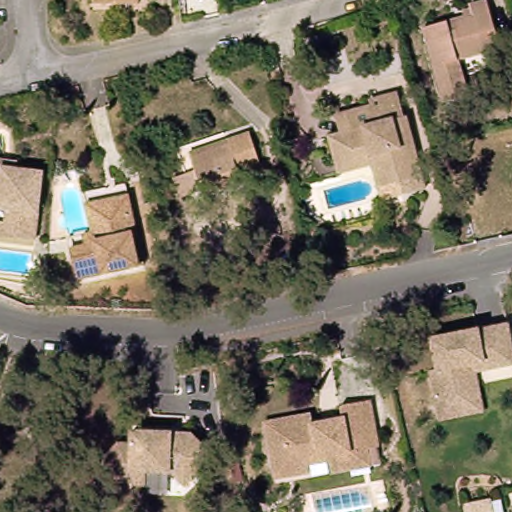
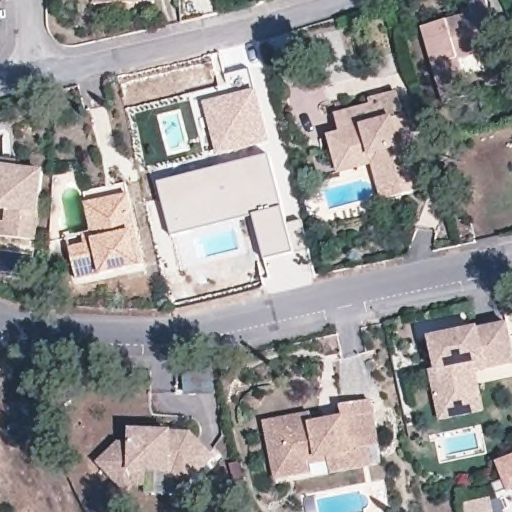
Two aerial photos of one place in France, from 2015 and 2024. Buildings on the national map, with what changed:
unchanged [(135,2),(110,3),(93,4),(93,0),(135,0),(135,2)]
unchanged [(465,95),(440,101),(423,26),(467,15),(466,5),(480,0),(482,0),(495,47),(455,59),(465,95)]
new [(256,88),(270,142),(216,155),(203,103),(256,88)]
unchanged [(406,172),(394,173),(388,155),(356,162),(348,139),(353,138),(346,121),(383,110),(386,123),(413,118),(433,177),(410,183),(406,172)]
demolished [(196,173),(195,159),(228,151),(228,142),(250,138),(258,169),(236,176),(237,184),(182,198),(176,176),(196,173)]
unchanged [(388,188),(381,167),(348,175),(339,140),(348,139),(356,162),(388,155),(394,173),(406,172),(410,183),(388,188)]
new [(270,154),(283,206),(251,215),(171,237),(156,182),(270,154)]
unchanged [(6,215),(0,214),(0,166),(3,166),(17,168),(16,175),(41,178),(34,245),(3,242),(0,242),(0,228),(5,228),(6,215)]
unchanged [(73,277),(70,254),(68,246),(83,244),(83,241),(81,232),(91,230),(86,202),(100,200),(130,195),(141,265),(119,269),(110,271),(73,277)]
new [(283,206),(295,254),(263,261),(251,215),(283,206)]
unchanged [(428,372),(436,371),(430,341),(506,326),(512,358),(512,366),(483,372),(481,363),(463,366),(470,400),(435,406),(428,372)]
unchanged [(473,373),(481,413),(438,421),(435,406),(470,400),(463,366),(481,363),(483,372),(473,373)]
unchanged [(264,419),(310,410),(311,420),(321,418),(331,416),(342,414),(340,401),(369,396),(378,442),(367,444),(370,461),(330,469),(329,461),(328,456),(308,460),(310,468),(286,472),(275,475),(269,444),(264,419)]
unchanged [(131,485),(123,493),(113,483),(95,465),(115,445),(128,446),(128,433),(143,433),(158,433),(187,434),(211,459),(181,485),(170,473),(143,472),(142,485),(131,485)]
new [(507,477),(503,464),(512,461),(512,489),(498,494),(493,482),(507,477)]
unchanged [(504,498),(507,512),(480,512),(479,504),(504,498)]

